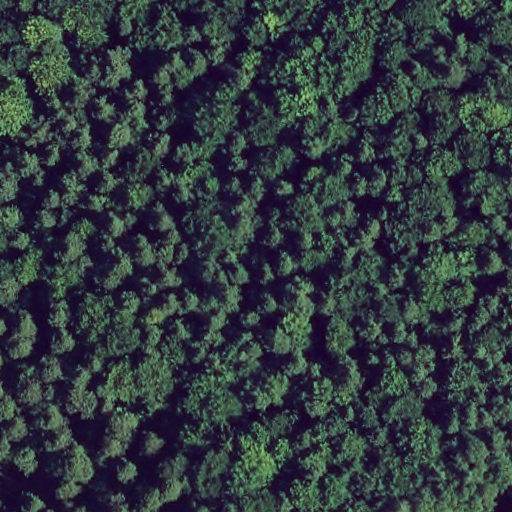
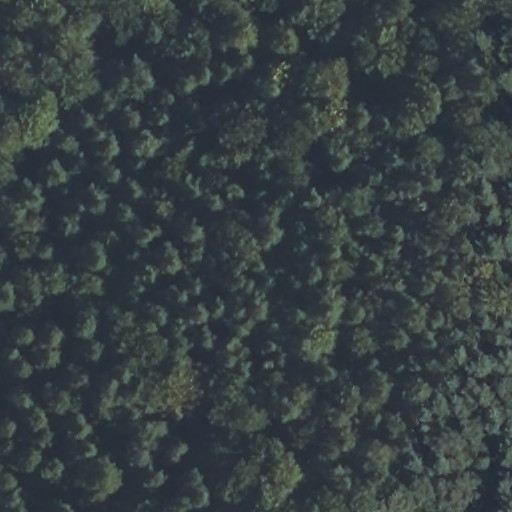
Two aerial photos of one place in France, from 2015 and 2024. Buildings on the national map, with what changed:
[]

